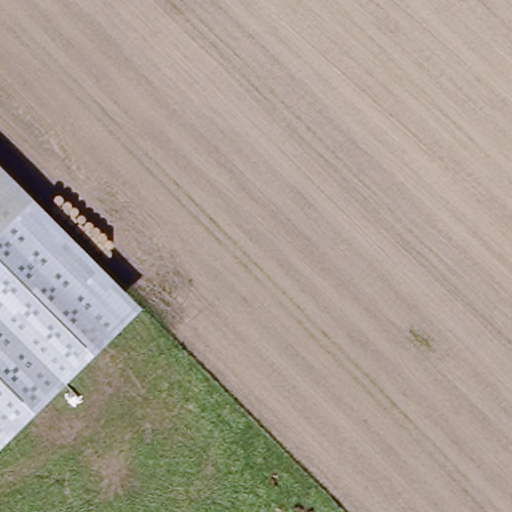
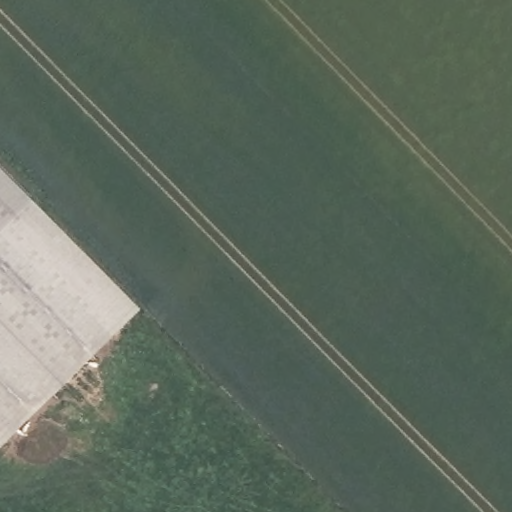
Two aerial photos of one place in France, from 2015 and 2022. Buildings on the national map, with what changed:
unchanged [(39,202),(0,241),(0,163),(39,202)]
unchanged [(0,450),(0,241),(39,202),(143,310),(0,450)]

